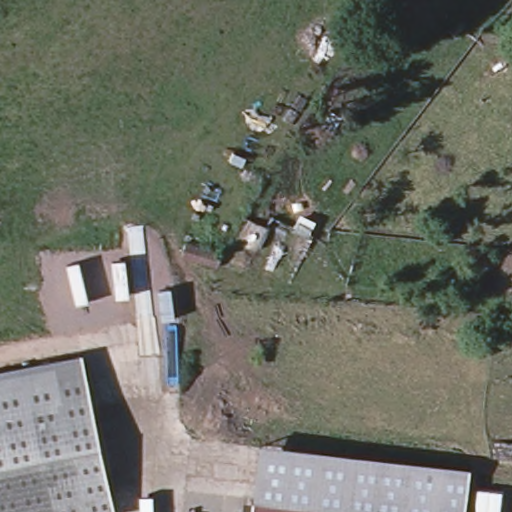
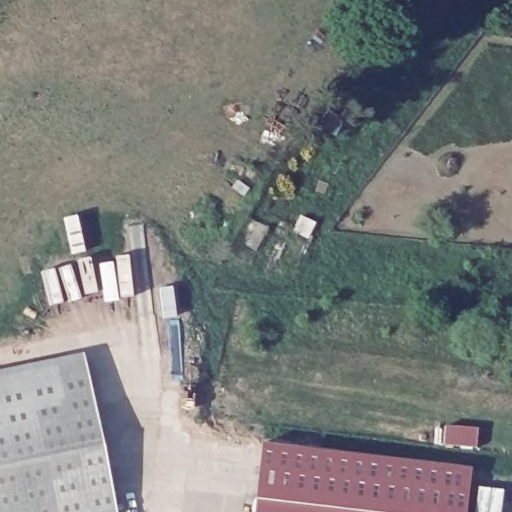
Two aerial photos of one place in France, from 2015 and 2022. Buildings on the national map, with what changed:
unchanged [(116,512),(0,512),(0,368),(80,351),(116,512)]
unchanged [(361,512),(253,498),(256,477),(260,443),(468,467),(463,503),(462,512),(361,512)]
unchanged [(361,512),(252,512),(253,498),(361,512)]

